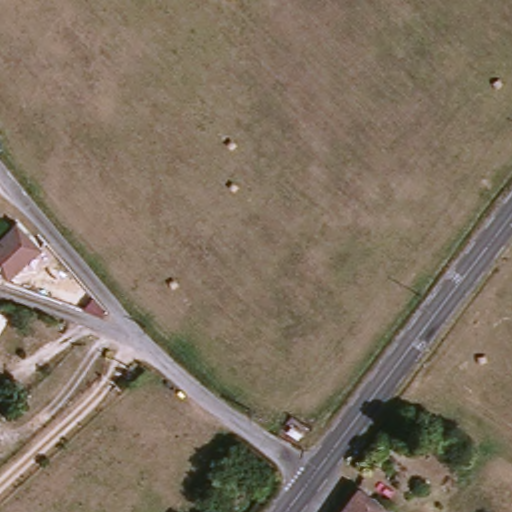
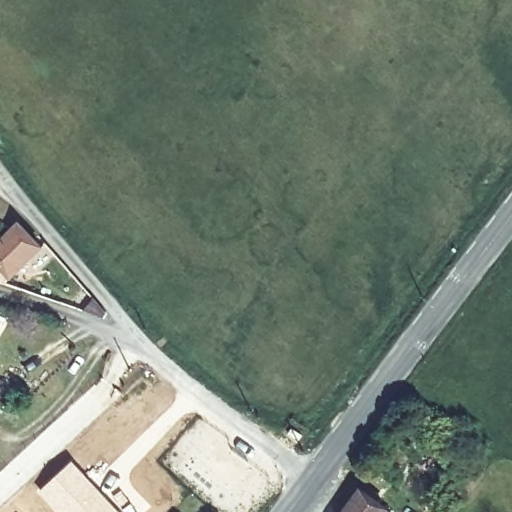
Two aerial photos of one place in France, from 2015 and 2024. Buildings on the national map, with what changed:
unchanged [(22,220),(42,249),(7,282),(0,275),(0,243),(22,220)]
new [(71,460),(119,512),(54,512),(36,492),(71,460)]
unchanged [(361,488),(392,512),(342,512),(361,488)]

